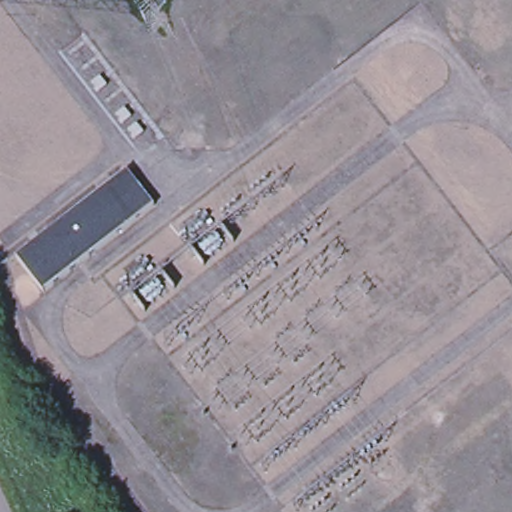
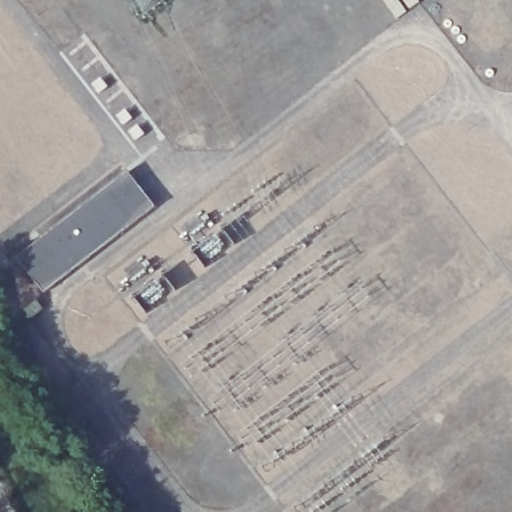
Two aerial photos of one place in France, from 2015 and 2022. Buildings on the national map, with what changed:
unchanged [(43,292),(20,260),(128,175),(153,209),(43,292)]

